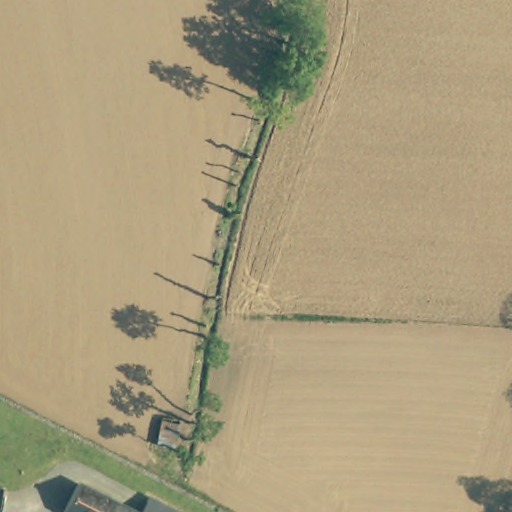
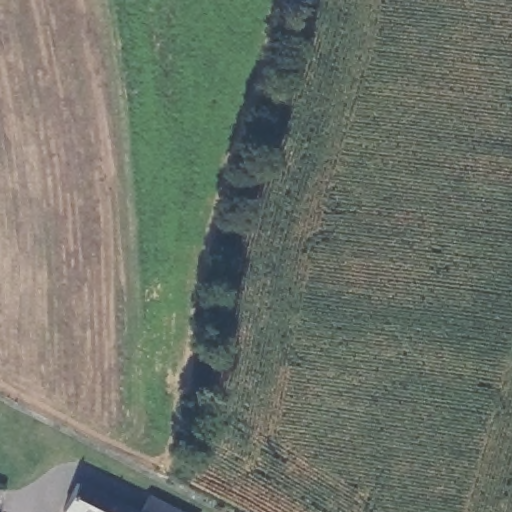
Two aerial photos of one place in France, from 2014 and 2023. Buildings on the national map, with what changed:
unchanged [(77,489),(78,486),(79,487),(129,512),(65,512),(77,489)]
unchanged [(149,500),(172,512),(143,512),(149,500)]

